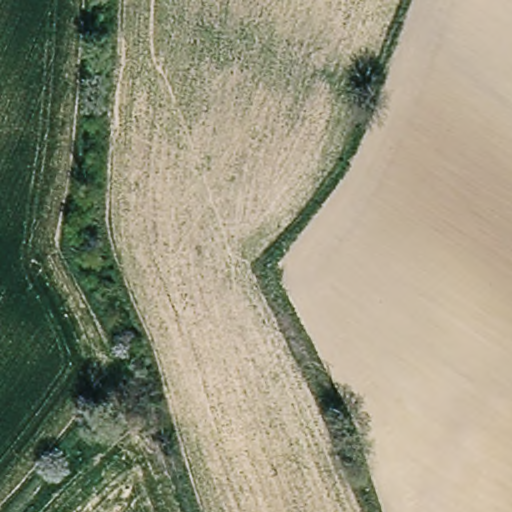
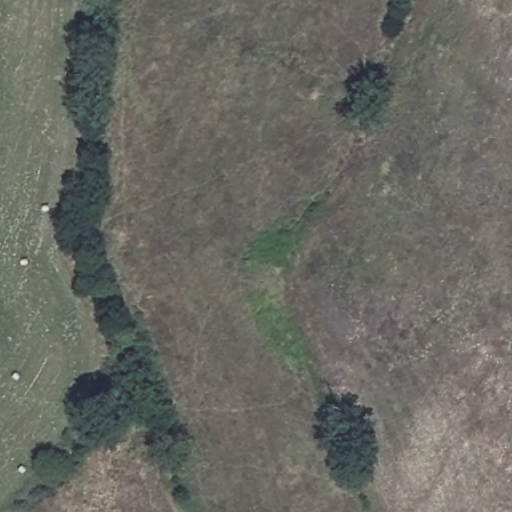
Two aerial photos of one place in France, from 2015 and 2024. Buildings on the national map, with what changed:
[]

